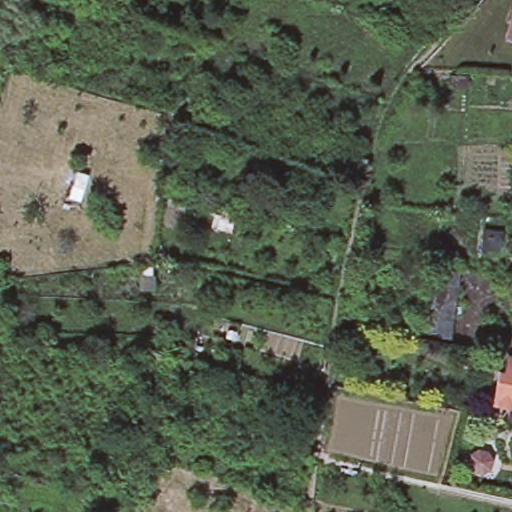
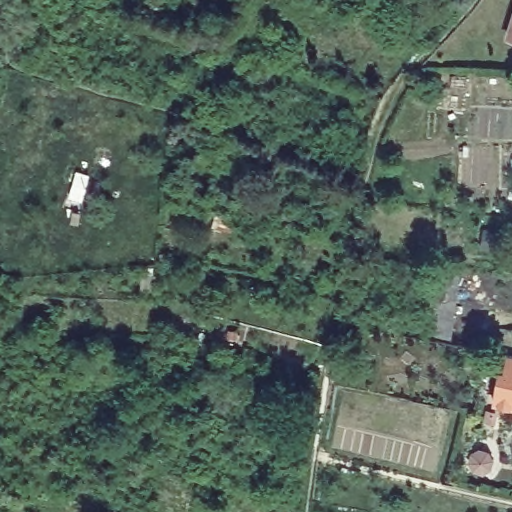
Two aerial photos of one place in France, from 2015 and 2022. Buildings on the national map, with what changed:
unchanged [(485,11),(492,0),(512,0),(512,3),(500,21),(485,11)]
unchanged [(512,35),(512,40),(511,39),(512,35)]
unchanged [(468,89),(454,89),(454,79),(468,80),(468,89)]
unchanged [(234,215),(231,230),(215,227),(217,212),(234,215)]
unchanged [(454,340),(436,338),(437,334),(425,333),(434,262),(464,266),(454,340)]

